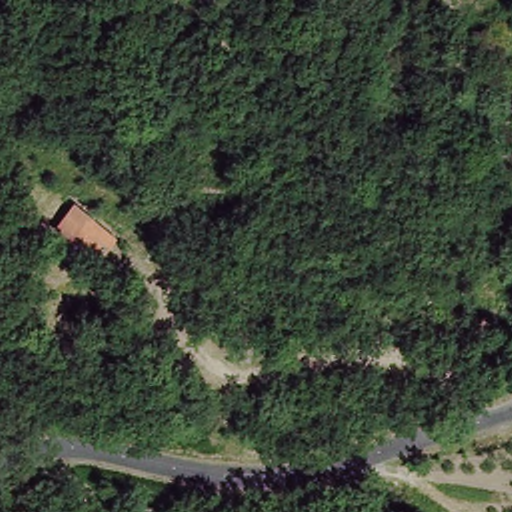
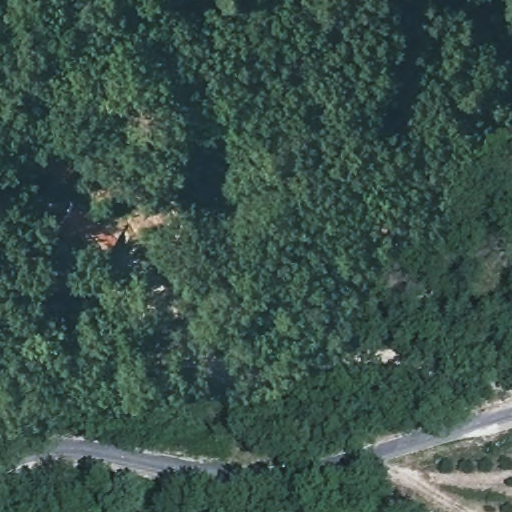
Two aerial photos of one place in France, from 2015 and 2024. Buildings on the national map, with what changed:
unchanged [(121,239),(108,260),(80,236),(93,216),(121,239)]

